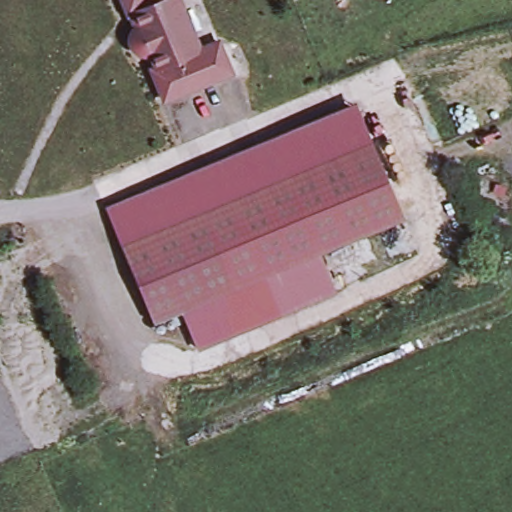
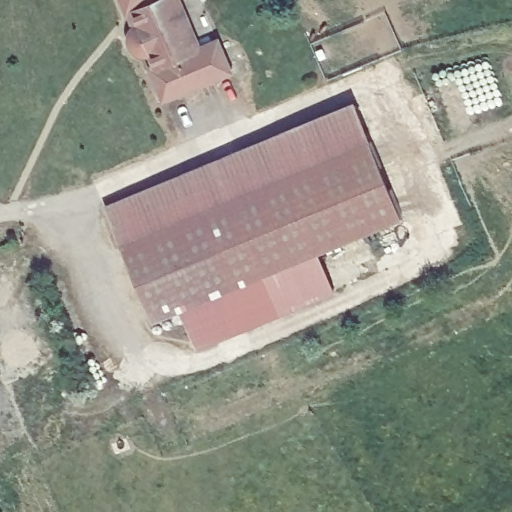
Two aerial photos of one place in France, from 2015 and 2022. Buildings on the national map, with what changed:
unchanged [(127,0),(179,0),(200,51),(222,41),(235,72),(169,100),(156,69),(161,67),(155,53),(144,26),(138,11),(133,14),(127,0)]
unchanged [(111,211),(361,106),(376,141),(125,246),(111,211)]
unchanged [(125,246),(376,141),(407,217),(316,255),(181,311),(156,321),(125,246)]
unchanged [(316,255),(335,295),(198,352),(181,311),(316,255)]

